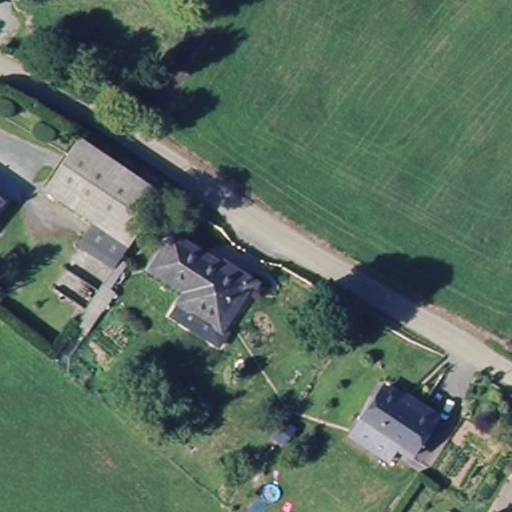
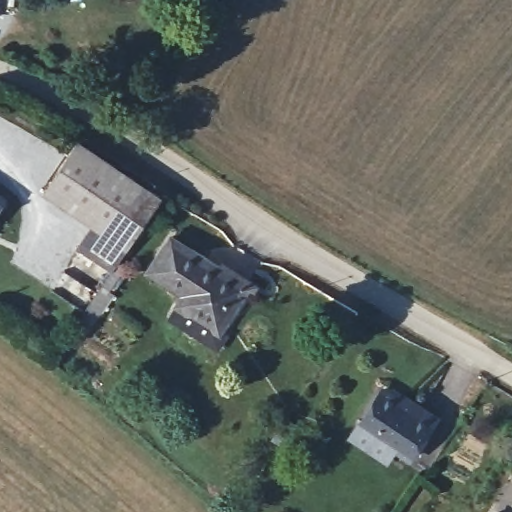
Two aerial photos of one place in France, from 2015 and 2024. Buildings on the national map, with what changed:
unchanged [(167,195),(123,259),(135,266),(70,369),(53,358),(108,270),(71,248),(89,227),(41,197),(80,141),(167,195)]
unchanged [(0,204),(3,207),(0,211),(0,204)]
unchanged [(197,297),(151,264),(178,227),(257,287),(198,369),(163,347),(197,297)]
unchanged [(411,469),(343,421),(371,381),(443,431),(411,469)]
unchanged [(489,500),(504,512),(480,512),(489,500)]

